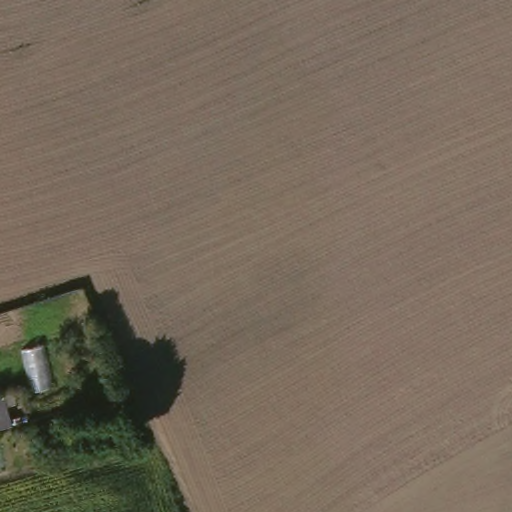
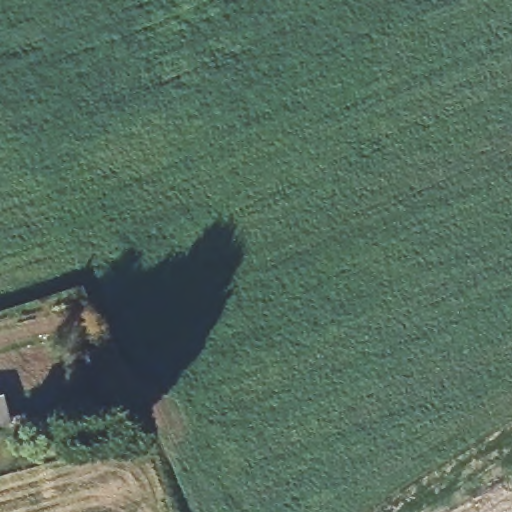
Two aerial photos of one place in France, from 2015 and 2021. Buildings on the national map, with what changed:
unchanged [(0,394),(14,391),(21,419),(0,424),(0,394)]

